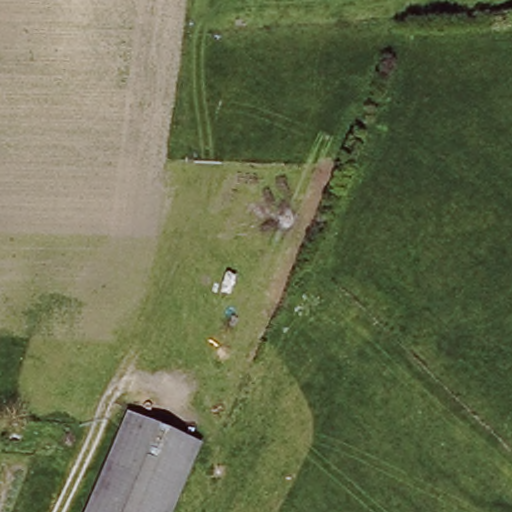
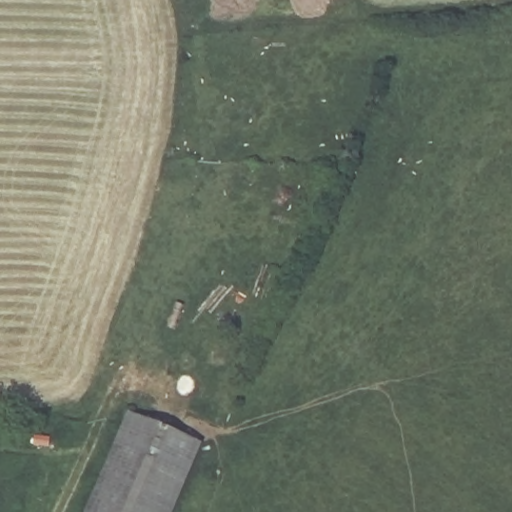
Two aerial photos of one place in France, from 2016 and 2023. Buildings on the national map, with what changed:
unchanged [(173,512),(89,512),(122,430),(127,419),(155,431),(199,449),(173,512)]

